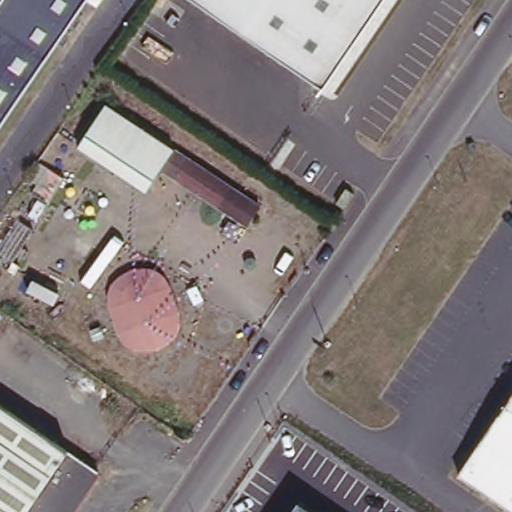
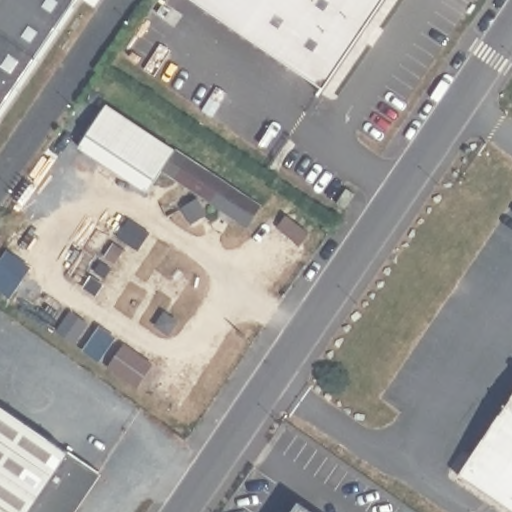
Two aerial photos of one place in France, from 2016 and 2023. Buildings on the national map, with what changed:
unchanged [(82,0),(0,119),(0,0),(82,0)]
unchanged [(327,84),(205,0),(384,0),(382,1),(327,84)]
unchanged [(260,207),(246,227),(165,169),(149,192),(80,145),(107,103),(260,207)]
unchanged [(75,449),(106,474),(80,512),(0,512),(0,399),(75,449)]
unchanged [(512,404),(512,509),(464,477),(512,404)]

